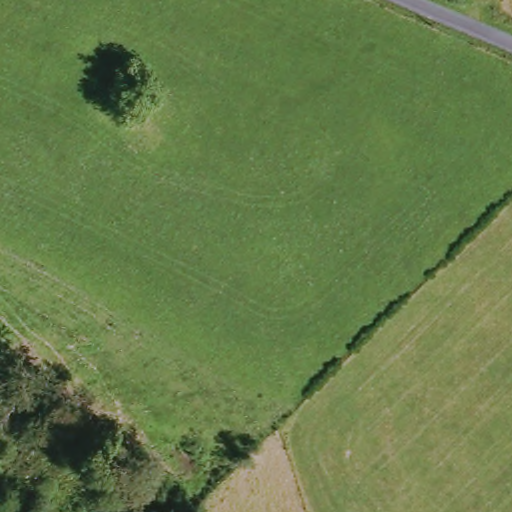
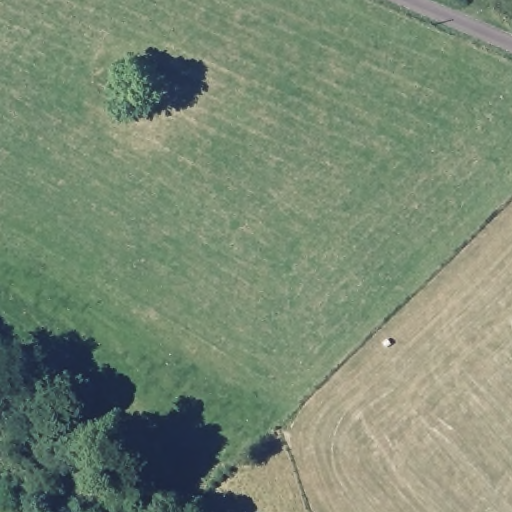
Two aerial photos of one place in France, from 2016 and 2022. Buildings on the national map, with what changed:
[]

